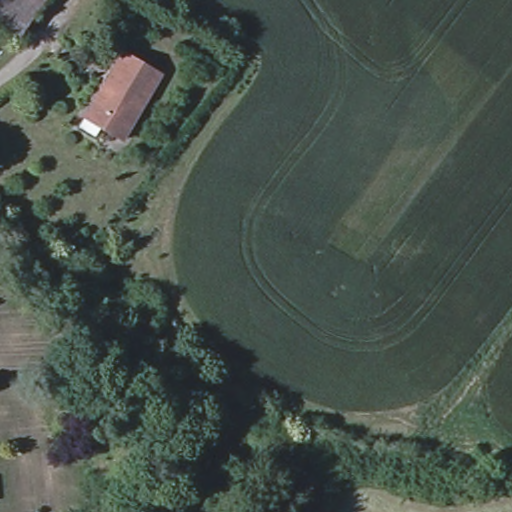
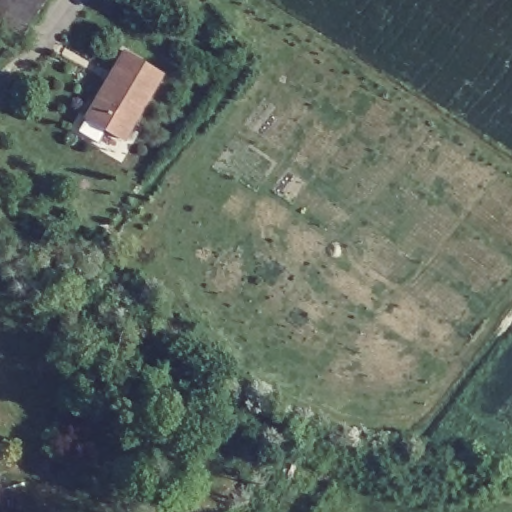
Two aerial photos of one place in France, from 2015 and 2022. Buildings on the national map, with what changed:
unchanged [(0,20),(0,0),(39,0),(20,33),(0,20)]
unchanged [(125,52),(162,78),(119,140),(82,115),(125,52)]

